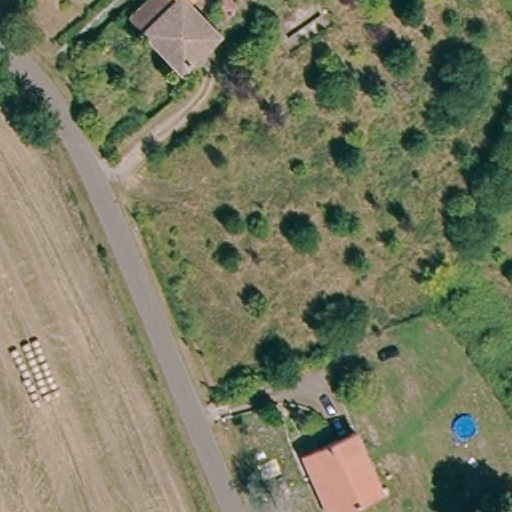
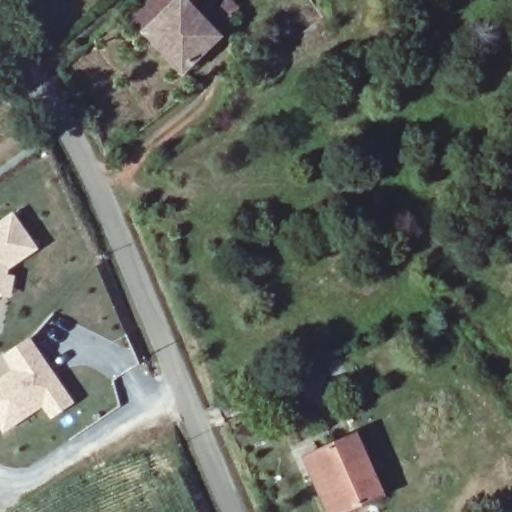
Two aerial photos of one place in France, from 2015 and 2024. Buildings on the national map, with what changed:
unchanged [(190,7),(220,41),(182,77),(129,19),(144,5),(149,0),(198,0),(190,7)]
new [(37,250),(9,269),(8,274),(15,275),(11,298),(0,297),(0,220),(13,211),(37,250)]
new [(75,402),(51,420),(43,408),(4,433),(0,428),(0,378),(12,370),(2,355),(31,336),(75,402)]
unchanged [(312,452),(350,436),(379,495),(339,512),(324,512),(300,457),(312,452)]

